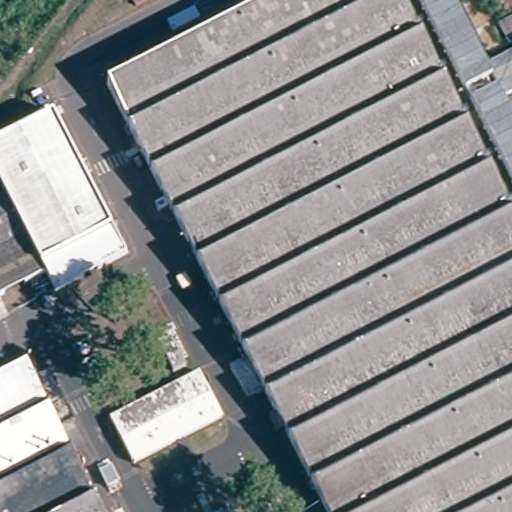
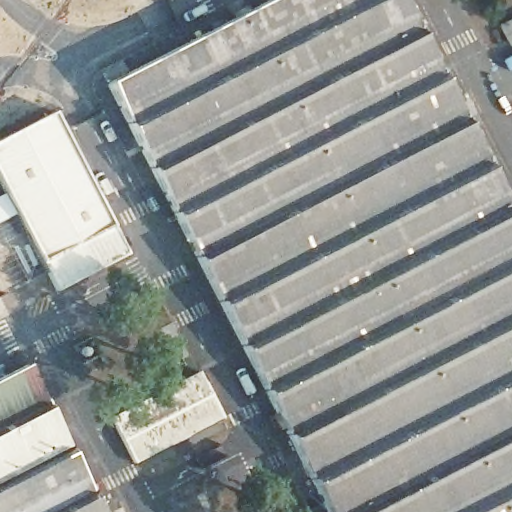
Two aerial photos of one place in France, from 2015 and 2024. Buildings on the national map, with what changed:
unchanged [(108,89),(282,0),(403,0),(512,214),(512,512),(329,512),(108,89)]
unchanged [(509,42),(501,27),(512,20),(512,42),(510,44),(509,42)]
unchanged [(130,251),(54,291),(45,272),(5,197),(0,186),(0,138),(53,110),(130,251)]
unchanged [(0,200),(5,197),(45,272),(0,297),(0,200)]
unchanged [(0,375),(5,372),(78,512),(0,512),(0,375)]
unchanged [(199,375),(224,422),(135,468),(111,421),(199,375)]

